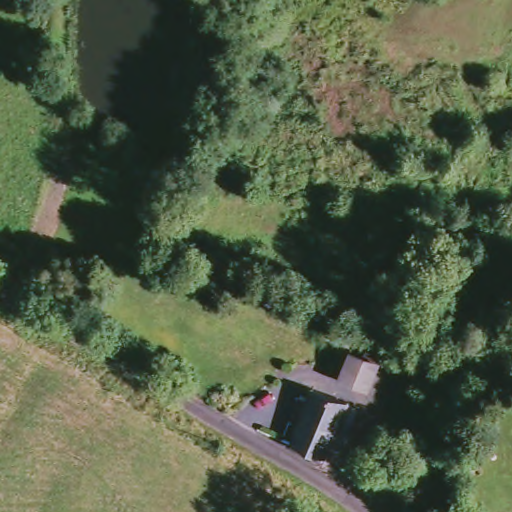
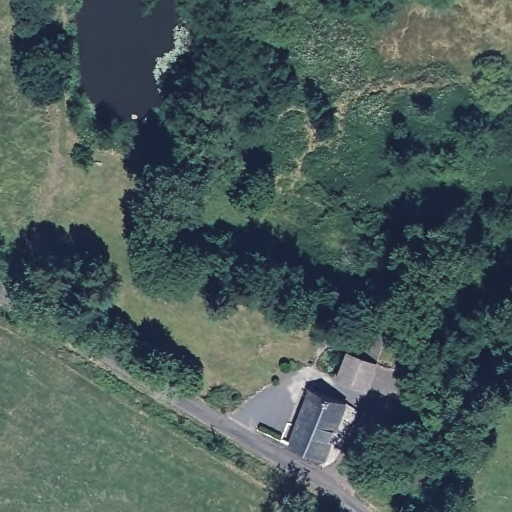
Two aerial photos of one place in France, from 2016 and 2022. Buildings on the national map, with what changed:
unchanged [(338,373),(349,352),(355,356),(366,334),(382,343),(372,365),(363,388),(338,373)]
unchanged [(310,385),(345,403),(315,463),(280,445),(310,385)]

